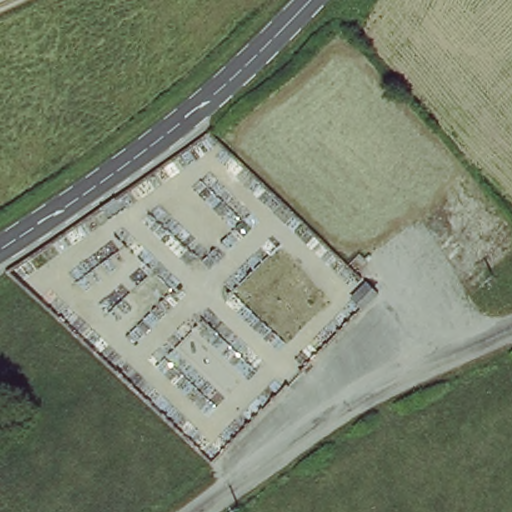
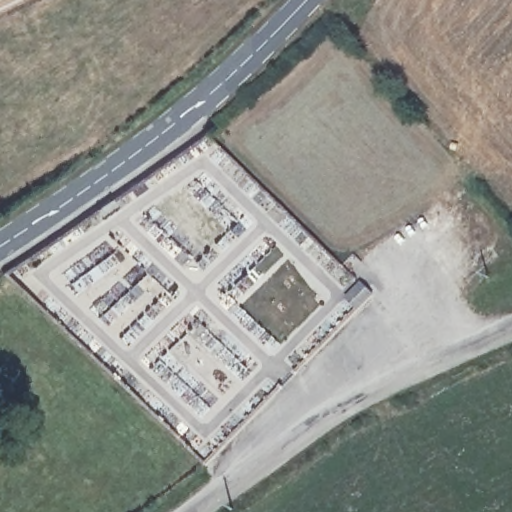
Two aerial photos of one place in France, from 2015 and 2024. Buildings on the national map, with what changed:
unchanged [(331,308),(345,293),(357,305),(344,320),(331,308)]

